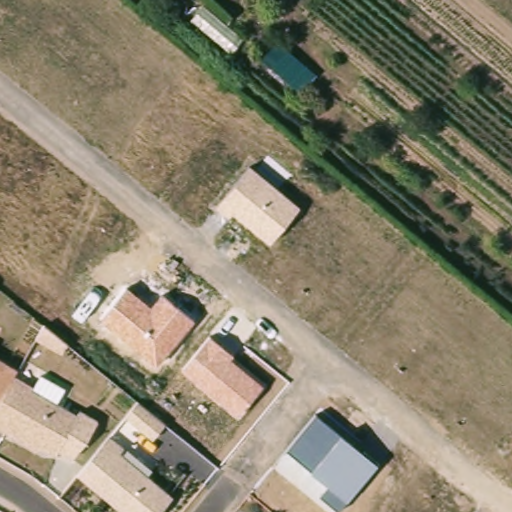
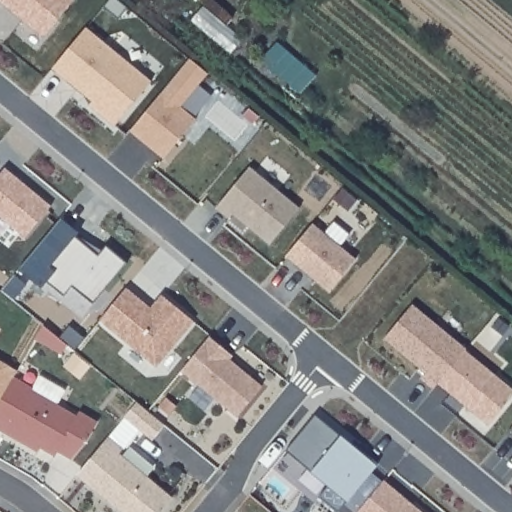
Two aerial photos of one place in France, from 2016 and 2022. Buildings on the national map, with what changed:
unchanged [(241,34),(227,51),(188,20),(198,3),(241,34)]
new [(129,133),(189,61),(207,76),(179,109),(195,122),(162,161),(148,149),(142,144),(129,133)]
unchanged [(234,213),(230,217),(218,205),(252,165),(302,209),(270,243),(234,213)]
new [(51,207),(26,238),(0,217),(0,175),(5,168),(51,207)]
new [(60,219),(102,251),(106,246),(127,262),(92,302),(72,285),(65,294),(46,281),(41,287),(21,269),(60,219)]
new [(312,226),(355,261),(328,293),(285,258),(312,226)]
unchanged [(194,320),(157,365),(100,318),(123,286),(150,307),(162,294),(194,320)]
new [(411,307),(465,352),(463,353),(436,386),(432,392),(418,381),(423,375),(382,341),(411,307)]
unchanged [(62,342),(57,350),(31,336),(38,322),(62,342)]
unchanged [(181,370),(211,335),(236,355),(232,357),(266,386),(237,417),(181,370)]
new [(436,386),(463,353),(512,394),(512,397),(487,427),(463,408),(450,397),(436,386)]
unchanged [(0,359),(17,367),(11,376),(0,396),(0,359)]
unchanged [(0,430),(0,396),(11,376),(30,386),(37,374),(61,388),(53,402),(74,414),(77,409),(95,419),(84,439),(70,457),(56,449),(53,454),(38,446),(36,450),(5,433),(0,430)]
unchanged [(160,423),(147,438),(120,415),(132,400),(160,423)]
unchanged [(378,466),(339,512),(338,512),(321,497),(331,488),(288,450),(317,413),(378,466)]
new [(506,435),(512,428),(512,441),(506,435)]
unchanged [(116,449),(169,493),(154,512),(123,512),(74,472),(106,433),(120,445),(116,449)]

